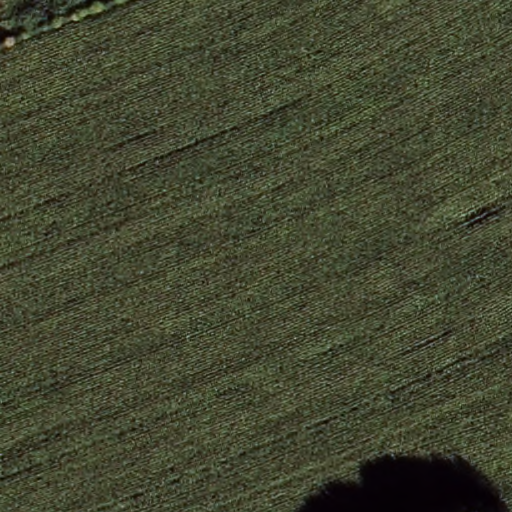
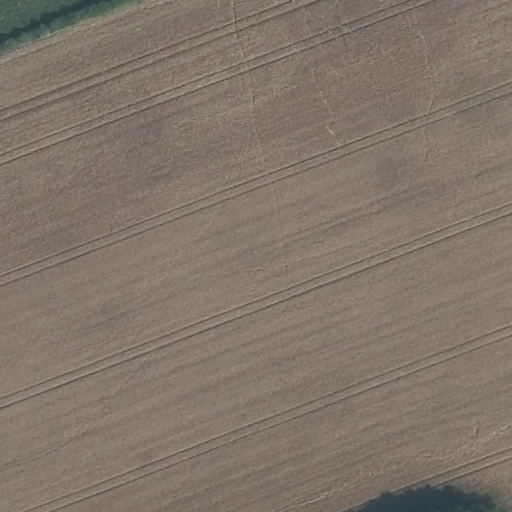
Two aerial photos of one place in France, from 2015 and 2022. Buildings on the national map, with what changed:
[]

